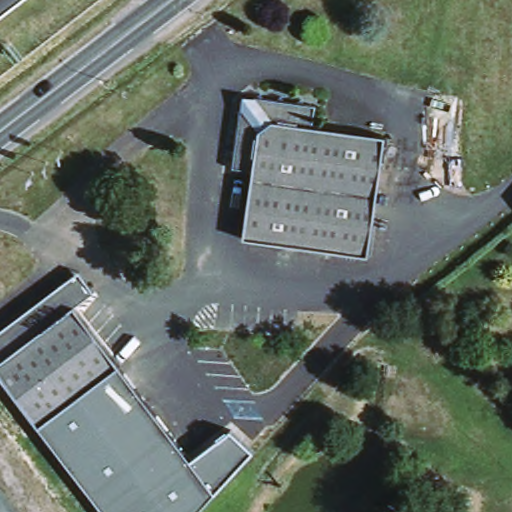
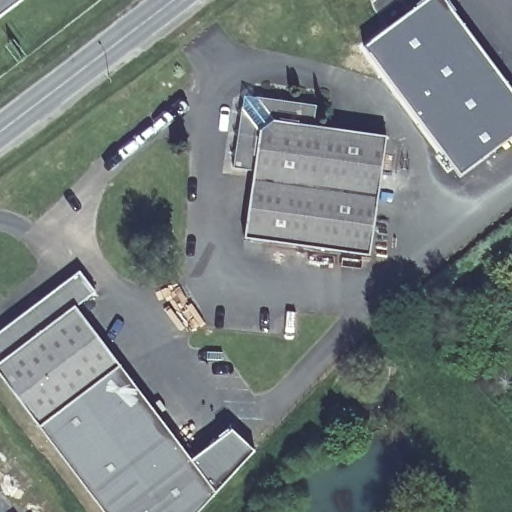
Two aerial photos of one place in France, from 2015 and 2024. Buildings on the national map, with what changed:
unchanged [(0,23),(0,0),(30,0),(0,23)]
new [(423,0),(446,0),(512,89),(512,145),(508,141),(459,176),(362,46),(423,0)]
unchanged [(372,262),(245,243),(255,176),(233,173),(242,120),(238,114),(263,99),(267,103),(320,111),(318,127),(389,139),(372,262)]
unchanged [(97,298),(80,312),(122,370),(41,431),(0,376),(0,335),(73,281),(90,286),(97,298)]
unchanged [(397,314),(407,315),(405,324),(396,323),(397,314)]
unchanged [(399,369),(397,381),(383,378),(385,367),(399,369)]
unchanged [(192,460),(233,428),(257,451),(200,512),(103,512),(41,431),(122,370),(192,460)]

